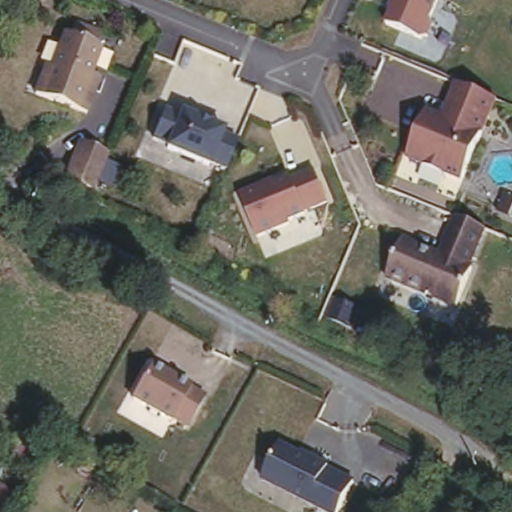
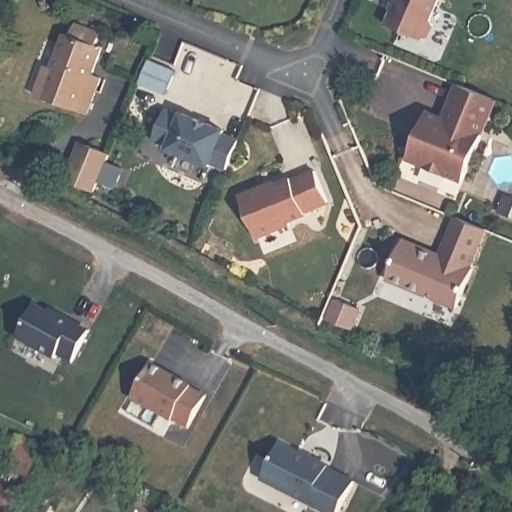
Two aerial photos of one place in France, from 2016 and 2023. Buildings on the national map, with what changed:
unchanged [(427,43),(385,28),(397,0),(443,0),(427,43)]
unchanged [(36,88),(47,63),(56,67),(72,29),(77,32),(82,20),(105,31),(100,42),(104,44),(88,81),(97,86),(86,111),(36,88)]
unchanged [(493,103),(461,180),(404,160),(424,110),(444,116),(452,90),(493,103)]
unchanged [(235,141),(225,168),(212,163),(207,167),(144,143),(158,108),(235,141)]
unchanged [(68,179),(83,141),(112,152),(97,190),(68,179)]
unchanged [(285,180),(312,173),(326,205),(301,218),(255,238),(238,195),(285,180)]
unchanged [(439,251),(451,222),(485,234),(452,305),(383,278),(402,240),(439,251)]
new [(36,299),(90,326),(70,362),(15,334),(36,299)]
unchanged [(188,386),(170,420),(130,399),(149,367),(188,386)]
unchanged [(0,467),(0,464),(20,427),(22,428),(48,441),(27,481),(0,467)]
unchanged [(338,512),(325,512),(260,479),(276,448),(351,480),(338,512)]
unchanged [(23,491),(13,512),(7,512),(0,509),(0,482),(23,491)]

